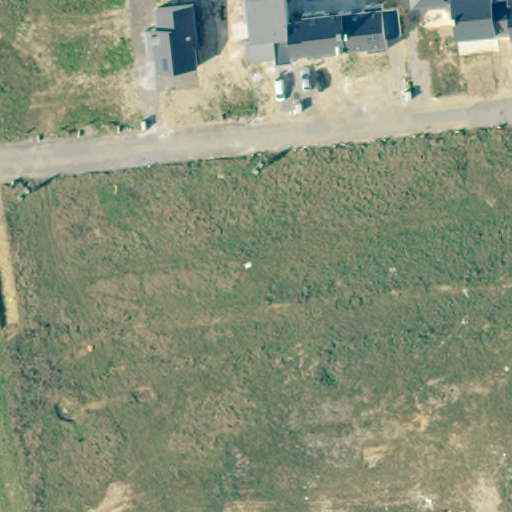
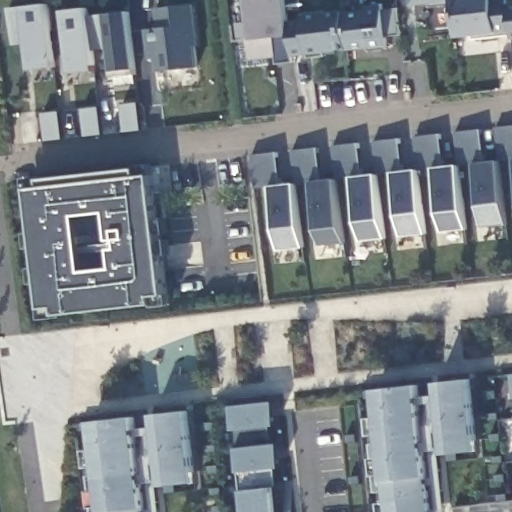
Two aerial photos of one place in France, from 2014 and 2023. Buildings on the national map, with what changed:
unchanged [(386,36),(387,45),(308,55),(307,53),(291,54),(291,61),(276,63),(276,57),(250,59),(247,37),(251,36),(248,0),(286,0),(290,21),(303,19),(303,16),(366,10),(366,5),(381,3),(382,10),(397,8),(401,35),(386,36)]
unchanged [(412,5),(412,0),(451,0),(412,5)]
unchanged [(509,34),(472,39),(472,35),(457,37),(452,0),(493,0),(493,1),(500,0),(509,0),(510,5),(512,5),(512,37),(510,37),(509,34)]
new [(48,3),(54,68),(31,70),(28,43),(14,43),(10,7),(23,6),(48,3)]
unchanged [(156,71),(155,59),(149,59),(146,28),(160,26),(157,8),(193,3),(198,45),(194,45),(196,67),(156,71)]
unchanged [(129,11),(135,71),(113,74),(110,49),(94,51),(96,70),(71,74),(63,9),(89,7),(90,15),(106,13),(129,11)]
new [(280,184),(295,182),(292,149),(318,146),(322,179),(335,178),(332,146),(359,142),(363,174),(376,173),(373,141),(399,137),(403,170),(416,168),(413,136),(440,133),(444,165),(458,164),(455,132),(481,129),(484,161),(497,159),(494,128),(512,126),(512,161),(498,162),(505,224),(481,226),(474,166),(458,168),(465,228),(441,231),(434,169),(417,171),(423,235),(400,236),(393,174),(376,176),(383,238),(359,240),(352,179),(336,180),(342,242),(318,245),(311,183),(295,185),(302,248),(278,250),(271,187),(254,188),(251,154),(277,151),(280,184)]
new [(42,177),(137,167),(150,165),(151,175),(164,294),(168,293),(169,306),(152,308),(152,303),(57,313),(58,316),(44,318),(43,308),(30,190),(27,179),(42,177)]
new [(477,450),(444,453),(444,449),(435,450),(443,512),(378,512),(377,502),(387,501),(386,490),(377,491),(375,475),(372,458),(371,443),(379,442),(379,435),(370,435),(368,418),(376,417),(373,388),(415,383),(416,396),(438,395),(437,382),(469,379),(477,450)]
new [(276,425),(268,426),(270,444),(278,443),(281,468),(275,469),(277,486),(289,485),(293,512),(245,512),(242,491),(240,472),(237,450),(234,430),(232,406),(273,402),(276,425)]
new [(194,483),(161,487),(161,482),(154,483),(158,512),(93,512),(91,507),(89,492),(88,476),(98,475),(96,465),(88,467),(85,449),(94,448),(91,420),(134,416),(135,429),(155,427),(153,413),(187,410),(194,483)]
new [(512,500),(512,512),(454,512),(453,507),(512,500)]

